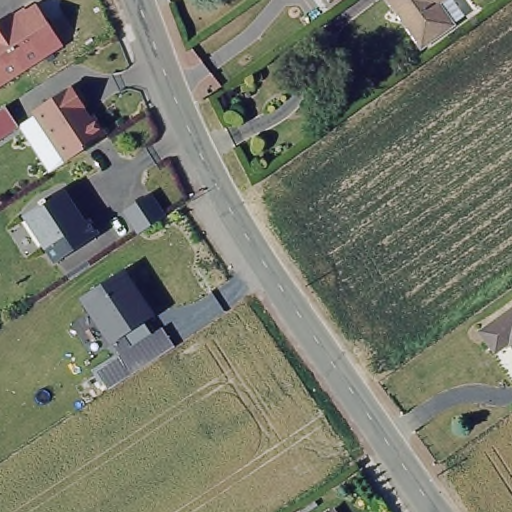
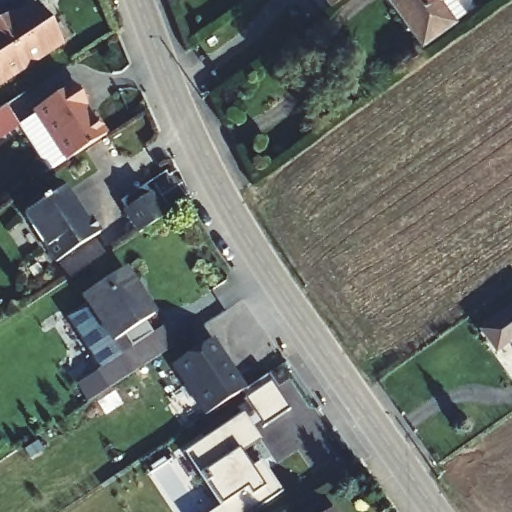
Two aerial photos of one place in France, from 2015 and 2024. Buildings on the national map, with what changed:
unchanged [(332,5),(330,0),(339,0),(332,5)]
unchanged [(451,17),(420,39),(395,0),(460,0),(465,8),(451,17)]
unchanged [(0,81),(0,21),(28,2),(55,43),(0,81)]
unchanged [(65,161),(32,111),(70,85),(71,87),(78,89),(85,97),(83,105),(85,107),(83,108),(90,117),(92,115),(105,135),(65,161)]
unchanged [(23,214),(41,202),(40,200),(45,197),(46,199),(63,188),(77,210),(74,212),(79,219),(85,215),(97,234),(55,262),(23,214)]
unchanged [(168,214),(143,230),(127,207),(153,190),(168,214)]
unchanged [(109,385),(92,364),(124,345),(120,333),(110,340),(77,296),(122,269),(151,307),(141,315),(147,329),(155,323),(167,342),(109,385)]
unchanged [(477,319),(512,296),(512,334),(495,345),(477,319)]
new [(244,388),(205,417),(170,367),(213,338),(244,388)]
new [(281,491),(251,512),(211,512),(220,505),(183,453),(241,413),(260,440),(241,453),(251,468),(260,461),(281,491)]
unchanged [(328,512),(336,507),(339,512),(328,512)]

